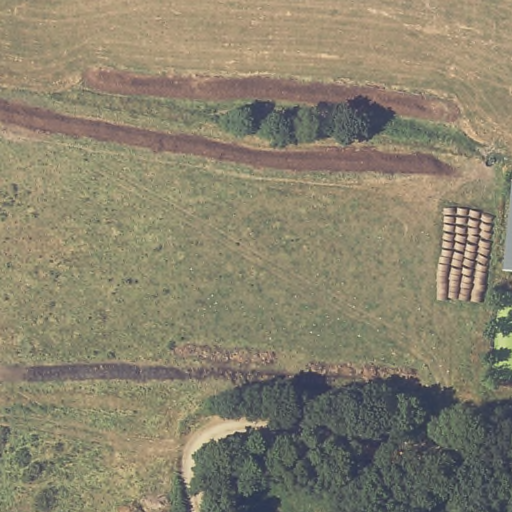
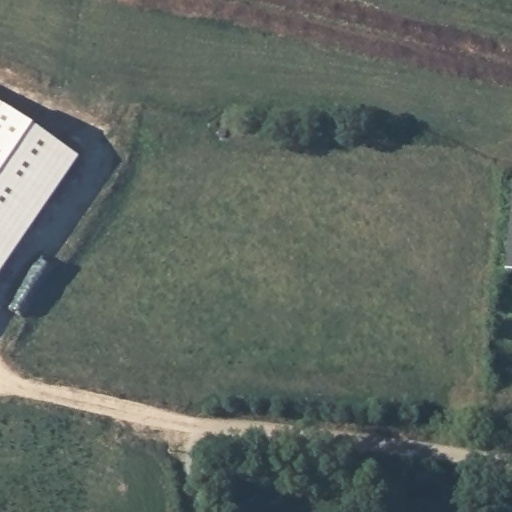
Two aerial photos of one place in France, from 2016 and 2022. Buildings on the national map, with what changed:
new [(79,157),(0,273),(0,103),(79,157)]
unchanged [(512,224),(512,273),(506,272),(512,224)]
unchanged [(212,489),(210,470),(239,460),(242,486),(212,489)]

